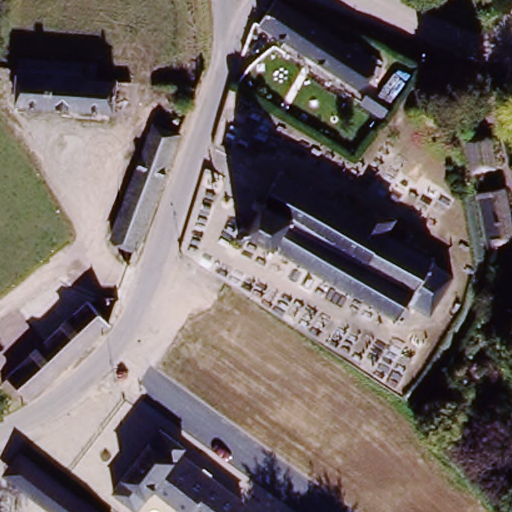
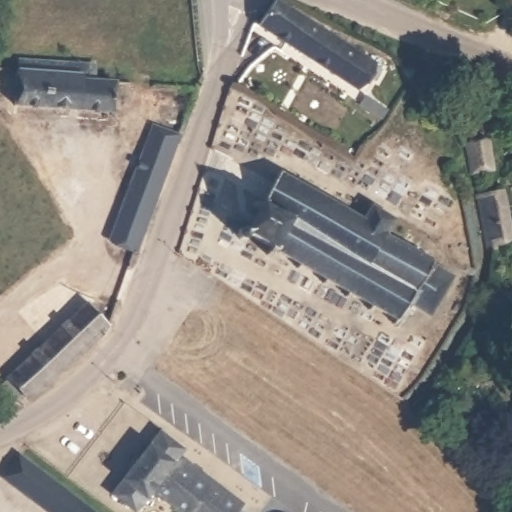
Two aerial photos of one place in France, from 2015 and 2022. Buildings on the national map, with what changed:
unchanged [(277,0),(381,66),(361,93),(258,29),(277,0)]
unchanged [(125,78),(121,117),(22,111),(23,76),(125,78)]
unchanged [(139,244),(110,230),(154,130),(177,141),(139,244)]
unchanged [(472,173),(469,144),(494,140),(498,169),(472,173)]
unchanged [(289,167),(369,220),(377,207),(405,226),(399,239),(440,266),(431,280),(446,291),(423,323),(408,312),(398,328),(246,229),(289,167)]
unchanged [(512,226),(512,246),(487,250),(477,196),(507,190),(512,226)]
unchanged [(104,325),(77,359),(55,381),(29,400),(9,379),(89,301),(108,320),(104,325)]
unchanged [(175,465),(209,493),(194,512),(179,512),(154,491),(138,512),(135,512),(114,494),(163,431),(187,450),(182,457),(175,465)]
unchanged [(27,454),(95,512),(49,512),(22,488),(30,478),(17,466),(27,454)]
unchanged [(247,509),(245,512),(194,512),(209,493),(175,465),(182,457),(247,509)]

